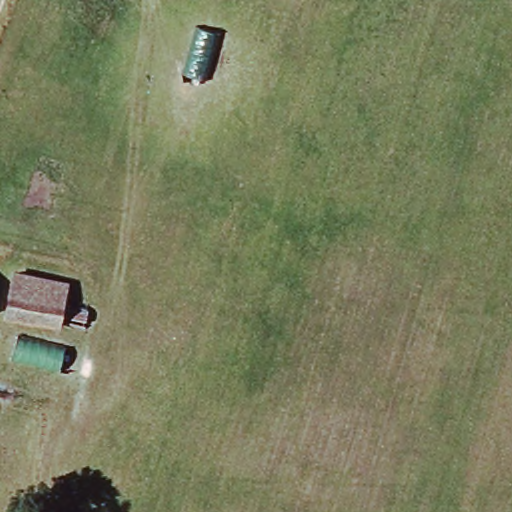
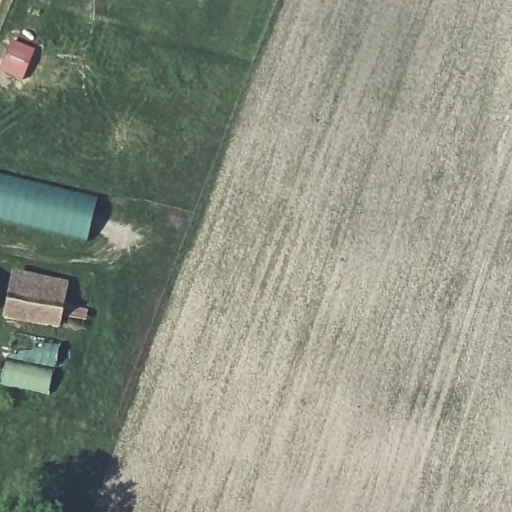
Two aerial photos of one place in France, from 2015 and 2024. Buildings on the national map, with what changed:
new [(70,193),(93,204),(90,227),(82,250),(0,222),(0,178),(70,193)]
unchanged [(63,286),(57,333),(5,329),(10,282),(63,286)]

